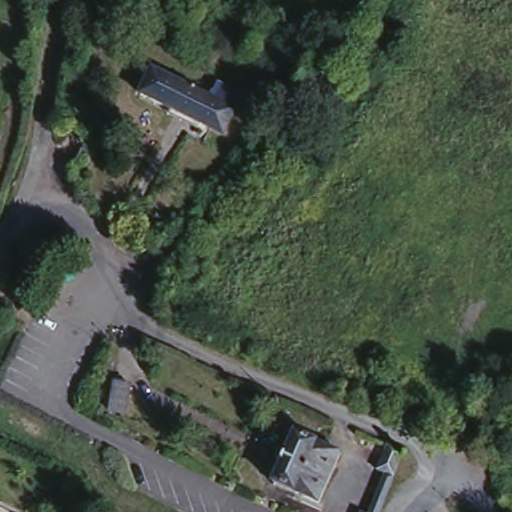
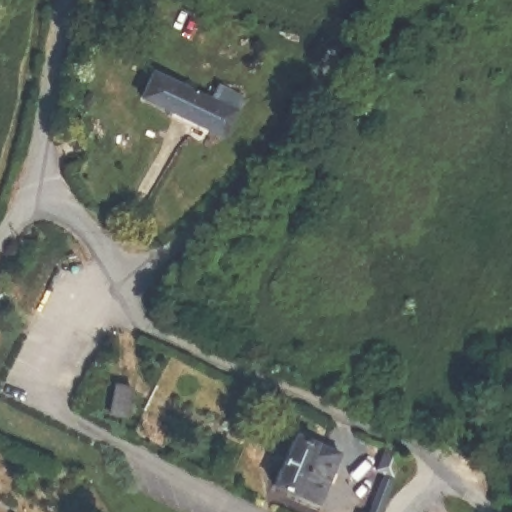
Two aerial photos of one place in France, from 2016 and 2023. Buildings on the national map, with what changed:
unchanged [(195,90),(201,80),(210,83),(211,79),(235,91),(214,132),(136,95),(149,69),(195,90)]
unchanged [(125,419),(106,415),(109,401),(90,400),(92,377),(130,383),(125,419)]
unchanged [(344,452),(318,505),(275,485),(300,432),(344,452)]
unchanged [(386,512),(374,512),(391,473),(382,470),(394,443),(412,450),(386,512)]

